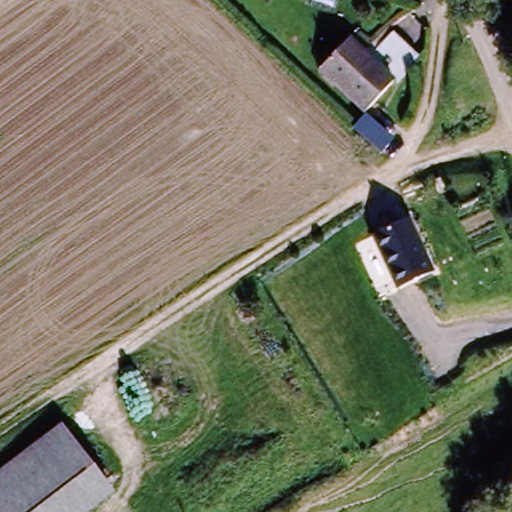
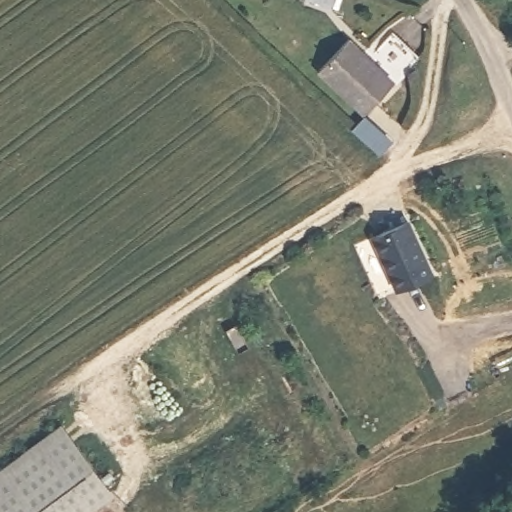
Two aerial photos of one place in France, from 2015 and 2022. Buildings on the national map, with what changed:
unchanged [(395,84),(363,114),(317,68),(350,39),(395,84)]
unchanged [(435,272),(394,290),(372,230),(411,217),(435,272)]
unchanged [(119,492),(93,512),(0,512),(0,473),(67,423),(119,492)]

